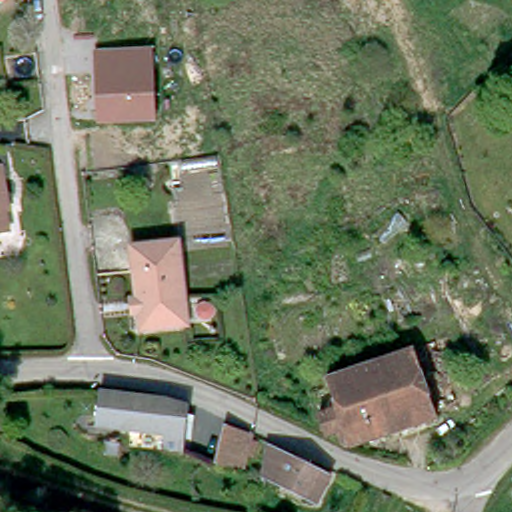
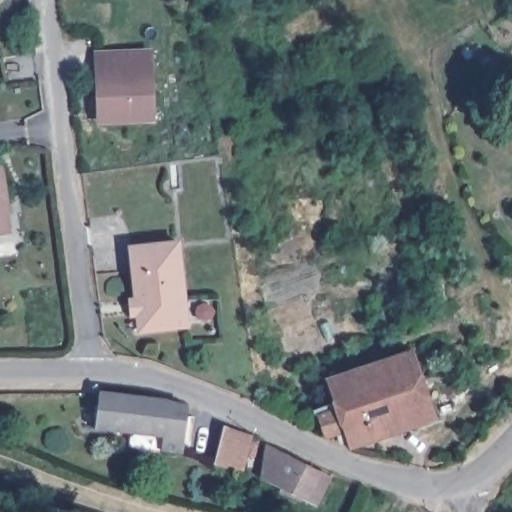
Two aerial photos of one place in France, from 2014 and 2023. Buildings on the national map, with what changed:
unchanged [(155,46),(157,119),(98,121),(95,49),(155,46)]
unchanged [(0,197),(0,167),(4,196),(0,197)]
unchanged [(0,229),(0,197),(6,229),(0,229)]
unchanged [(128,299),(135,298),(130,244),(177,239),(183,293),(187,323),(165,325),(138,328),(137,312),(130,312),(128,299)]
unchanged [(430,337),(454,405),(432,413),(408,345),(430,337)]
unchanged [(315,411),(333,403),(323,375),(368,360),(395,350),(408,345),(432,413),(345,444),(340,425),(322,430),(315,411)]
unchanged [(186,401),(186,405),(185,412),(192,412),(190,423),(183,422),(180,448),(159,446),(160,432),(100,427),(100,425),(92,424),(97,390),(98,390),(109,390),(165,396),(186,401)]
unchanged [(252,437),(242,472),(216,462),(228,427),(252,437)]
unchanged [(102,445),(122,447),(120,456),(101,454),(102,445)]
unchanged [(332,478),(323,492),(317,503),(265,476),(268,445),(332,478)]

